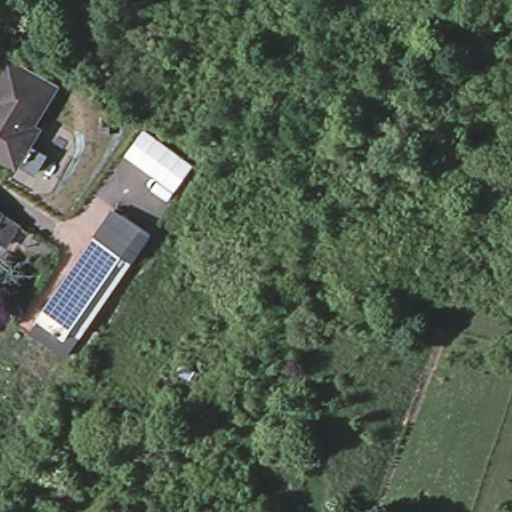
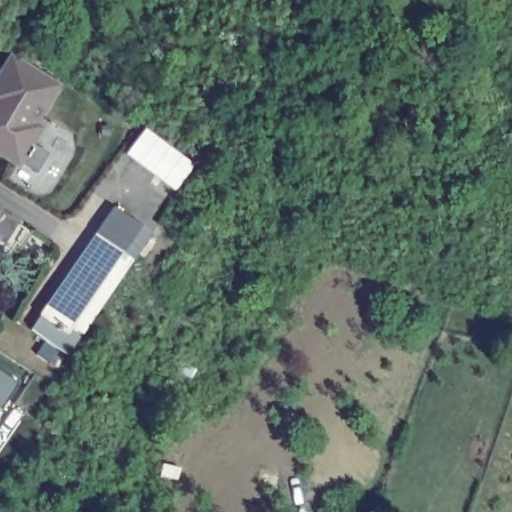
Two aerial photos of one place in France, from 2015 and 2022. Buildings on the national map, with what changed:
unchanged [(20,57),(63,86),(39,123),(45,127),(35,142),(52,154),(40,171),(22,159),(20,163),(0,149),(0,86),(20,57)]
unchanged [(18,223),(5,243),(0,240),(0,211),(18,223)]
unchanged [(99,241),(107,229),(119,213),(155,237),(145,253),(135,266),(126,260),(59,355),(32,336),(99,241)]
new [(20,384),(2,410),(0,408),(0,370),(20,384)]

